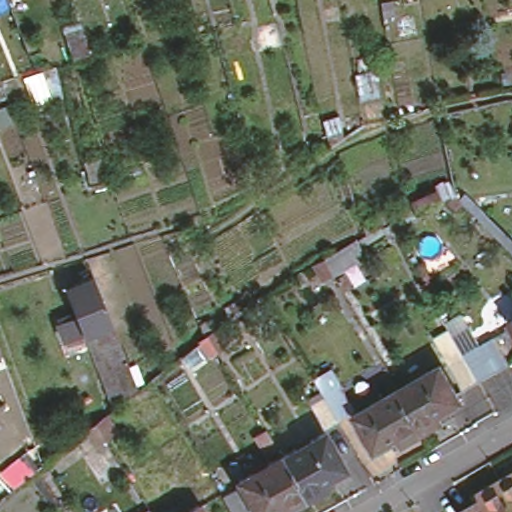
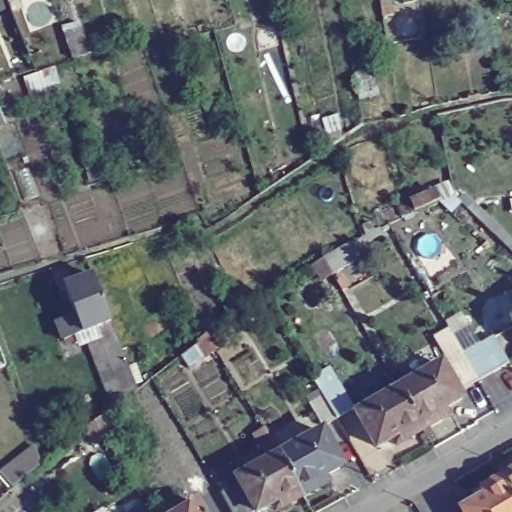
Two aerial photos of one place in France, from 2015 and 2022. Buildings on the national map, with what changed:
unchanged [(12,15),(7,3),(0,6),(0,0),(20,0),(24,10),(12,15)]
unchanged [(88,56),(72,60),(67,48),(85,44),(88,56)]
unchanged [(333,255),(342,270),(331,276),(321,282),(311,267),(322,261),(333,255)]
unchanged [(77,325),(67,328),(59,331),(51,314),(60,310),(70,306),(60,278),(88,267),(105,314),(111,327),(96,333),(91,320),(77,325)]
unchanged [(502,324),(512,316),(512,336),(502,324)]
unchanged [(451,371),(446,360),(461,351),(452,336),(470,326),(480,345),(494,338),(509,365),(478,381),(461,390),(451,371)]
unchanged [(215,330),(223,346),(215,352),(205,361),(195,345),(205,338),(215,330)]
unchanged [(439,363),(460,398),(436,412),(442,421),(425,432),(398,387),(439,363)]
unchanged [(308,403),(322,396),(311,377),(328,367),(353,407),(336,418),(321,426),(308,403)]
unchanged [(425,432),(404,444),(398,435),(376,447),(355,412),(398,387),(425,432)]
unchanged [(94,447),(84,432),(95,424),(103,417),(112,435),(103,441),(94,447)]
unchanged [(252,438),(263,431),(275,425),(286,443),(274,450),(263,456),(252,438)]
unchanged [(320,430),(338,464),(314,477),(317,482),(295,493),(275,455),(320,430)]
unchanged [(295,493),(275,502),(272,495),(251,505),(234,475),(275,455),(295,493)]
unchanged [(512,471),(512,490),(503,475),(512,471)]
unchanged [(512,490),(512,512),(468,512),(464,505),(486,493),(483,486),(503,475),(512,490)]
unchanged [(222,498),(235,491),(248,512),(230,512),(222,498)]
unchanged [(192,497),(202,512),(167,512),(192,497)]

